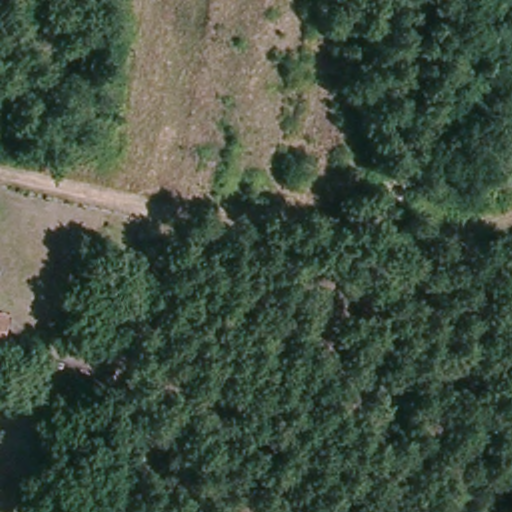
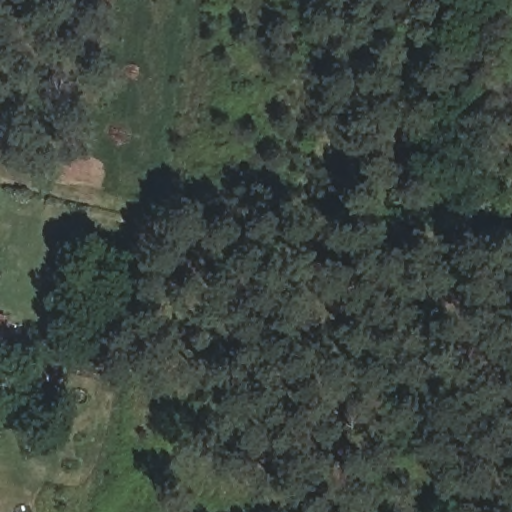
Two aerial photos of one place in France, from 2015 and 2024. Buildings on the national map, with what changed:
unchanged [(0,315),(15,319),(6,353),(0,352),(0,315)]

